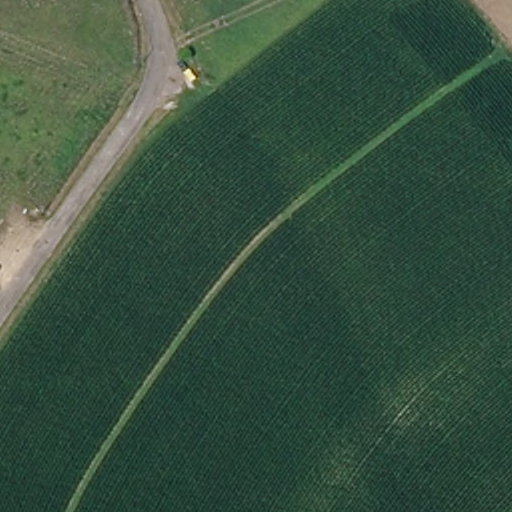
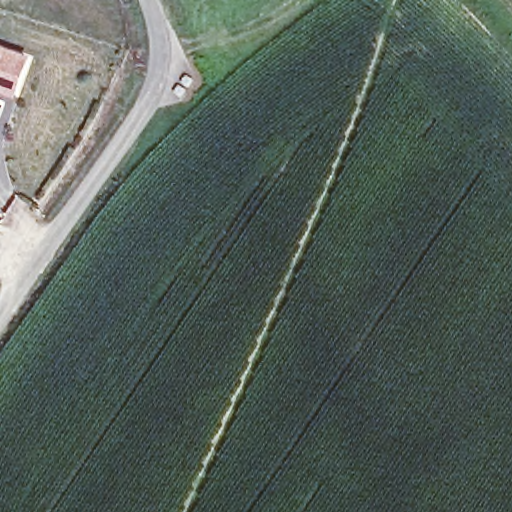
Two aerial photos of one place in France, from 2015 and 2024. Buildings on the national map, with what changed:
new [(16,100),(0,93),(0,47),(30,57),(16,100)]

